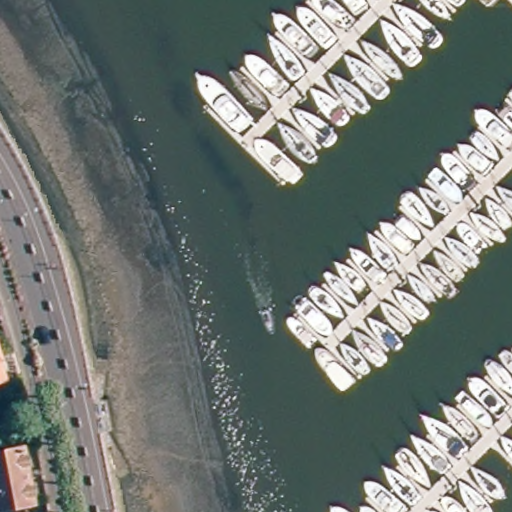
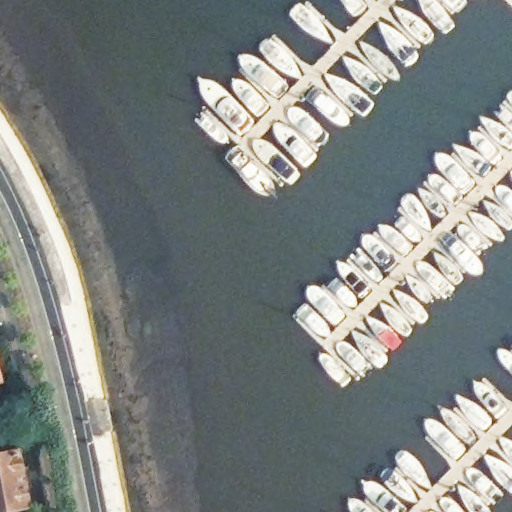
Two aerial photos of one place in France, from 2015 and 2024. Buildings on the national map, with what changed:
unchanged [(1,369),(0,369),(0,366),(1,369)]
unchanged [(6,400),(11,424),(2,426),(0,426),(0,401),(6,400)]
unchanged [(31,512),(0,512),(0,461),(20,458),(31,512)]

